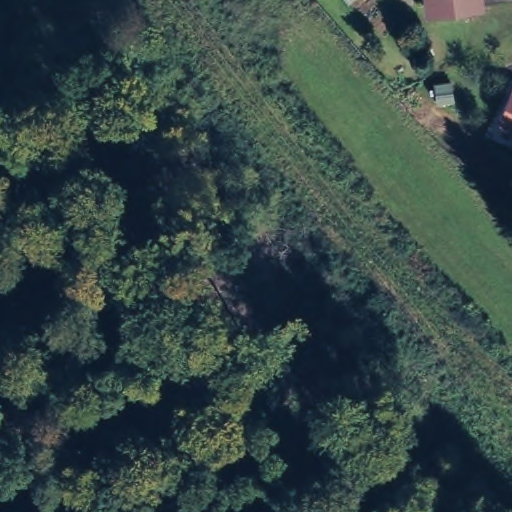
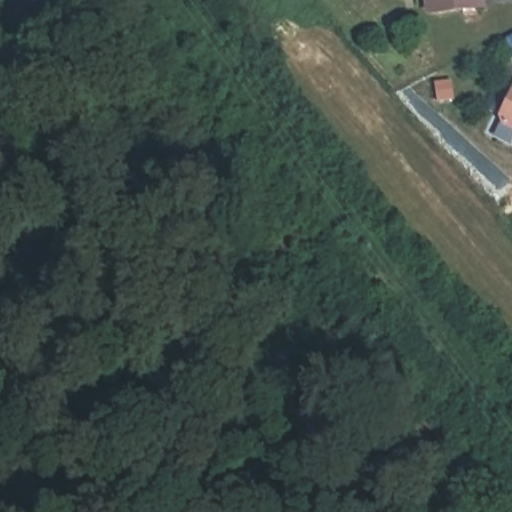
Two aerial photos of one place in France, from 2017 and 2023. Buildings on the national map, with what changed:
unchanged [(429,13),(427,0),(479,0),(480,6),(429,13)]
unchanged [(499,119),(512,93),(512,131),(501,125),(499,119)]

